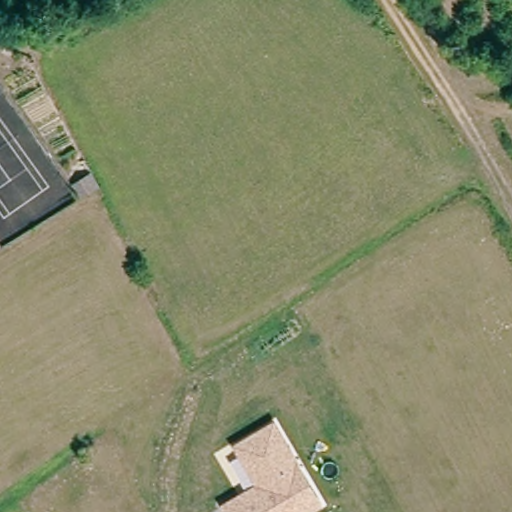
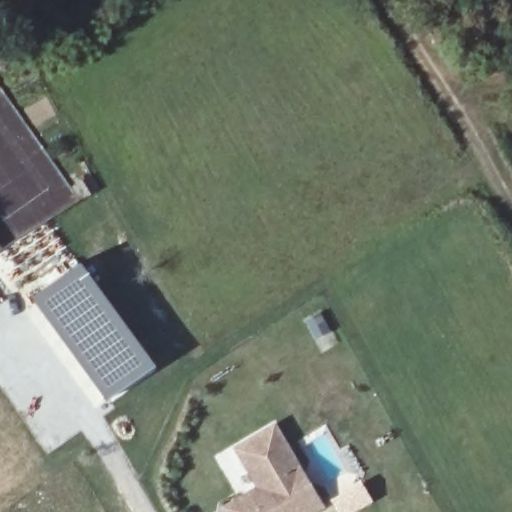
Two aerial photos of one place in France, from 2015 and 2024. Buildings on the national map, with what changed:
unchanged [(92,186),(71,199),(62,185),(84,172),(92,186)]
new [(152,364),(105,398),(32,296),(78,261),(152,364)]
unchanged [(320,512),(225,512),(220,504),(254,487),(232,446),(275,422),(326,508),(320,512)]

